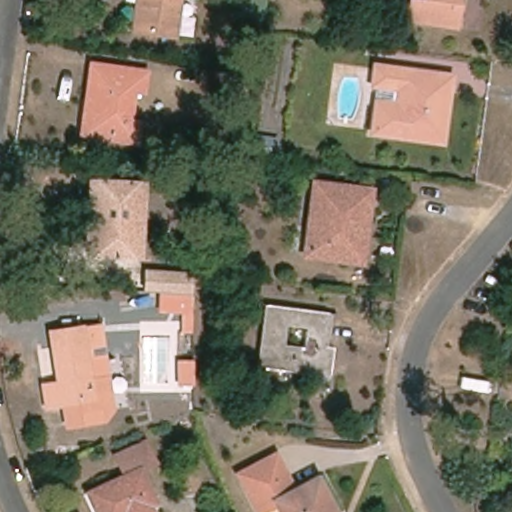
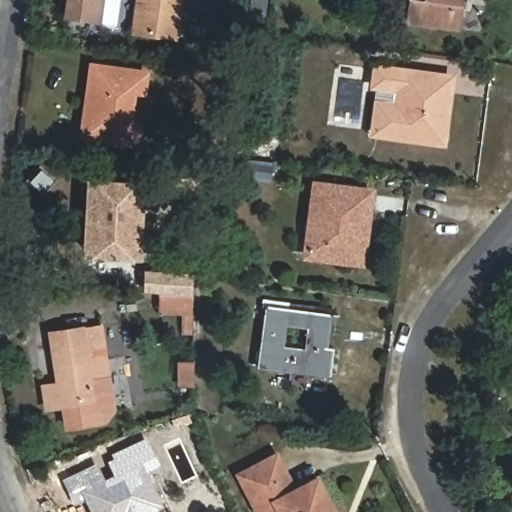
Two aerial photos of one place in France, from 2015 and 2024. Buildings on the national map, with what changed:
new [(66,19),(68,0),(104,0),(100,24),(66,19)]
unchanged [(133,32),(138,0),(181,0),(175,39),(133,32)]
unchanged [(409,23),(412,2),(426,3),(426,0),(461,0),(458,29),(409,23)]
unchanged [(93,108),(85,107),(91,65),(146,73),(145,94),(134,92),(130,123),(140,124),(138,144),(89,139),(93,108)]
unchanged [(439,95),(434,144),(372,135),(376,102),(393,104),(396,91),(372,88),(375,66),(453,77),(450,97),(439,95)]
unchanged [(254,136),(279,140),(276,161),(250,158),(254,136)]
unchanged [(143,186),(141,206),(134,205),(131,257),(89,254),(92,184),(143,186)]
unchanged [(372,192),(370,211),(361,210),(354,264),(305,258),(314,184),(372,192)]
unchanged [(194,334),(182,334),(182,317),(158,315),(159,292),(141,291),(141,270),(160,272),(190,272),(194,334)]
unchanged [(268,307),(330,315),(326,349),(334,349),(330,377),(259,368),(268,307)]
unchanged [(104,325),(117,409),(105,424),(65,429),(61,407),(94,402),(90,381),(109,377),(106,362),(88,364),(83,329),(104,325)]
unchanged [(94,402),(61,407),(46,409),(43,387),(59,384),(50,334),(83,329),(88,364),(106,362),(109,377),(90,381),(94,402)]
unchanged [(194,386),(177,384),(178,358),(194,359),(194,386)]
unchanged [(115,457),(145,442),(156,464),(141,472),(161,512),(97,512),(88,494),(125,477),(115,457)]
unchanged [(277,501),(259,511),(239,470),(277,451),(295,486),(317,474),(337,512),(282,512),(277,501)]

